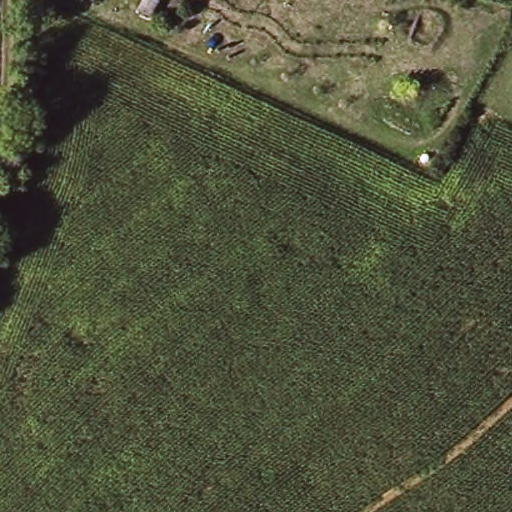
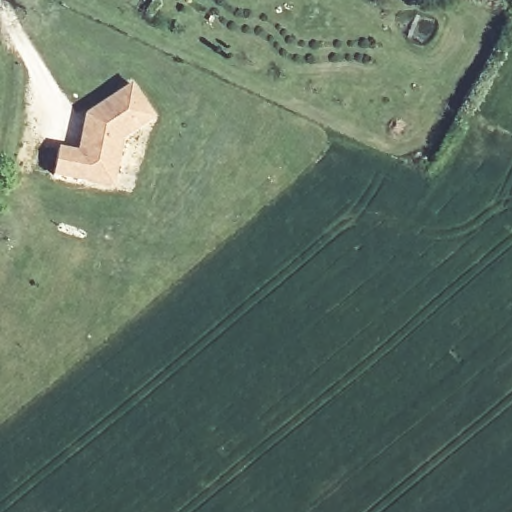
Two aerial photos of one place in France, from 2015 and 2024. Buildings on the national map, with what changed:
new [(90,181),(75,179),(55,175),(60,147),(80,152),(84,134),(87,116),(87,114),(132,84),(154,117),(124,139),(118,165),(114,186),(90,181)]

